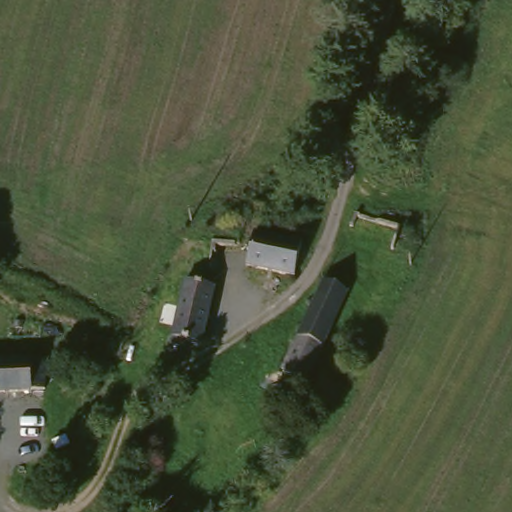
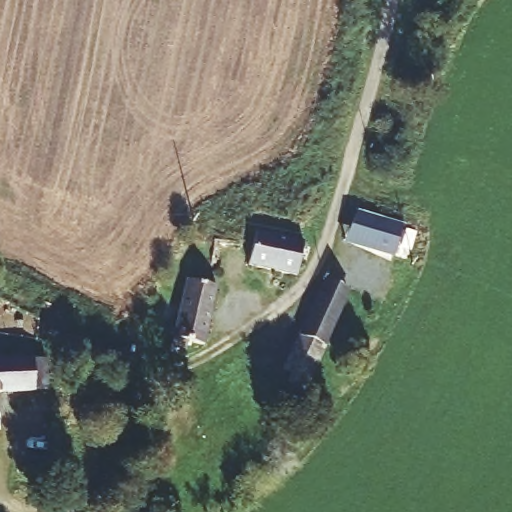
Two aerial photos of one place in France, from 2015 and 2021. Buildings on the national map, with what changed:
new [(343,242),(357,211),(404,225),(393,256),(343,242)]
unchanged [(291,278),(283,277),(243,267),(251,235),(299,245),(291,278)]
unchanged [(344,290),(304,380),(279,370),(311,298),(318,281),(328,282),(344,290)]
unchanged [(181,285),(214,292),(204,337),(201,348),(184,345),(180,360),(164,357),(181,285)]
unchanged [(38,360),(41,389),(29,388),(28,392),(0,393),(0,362),(38,360)]

